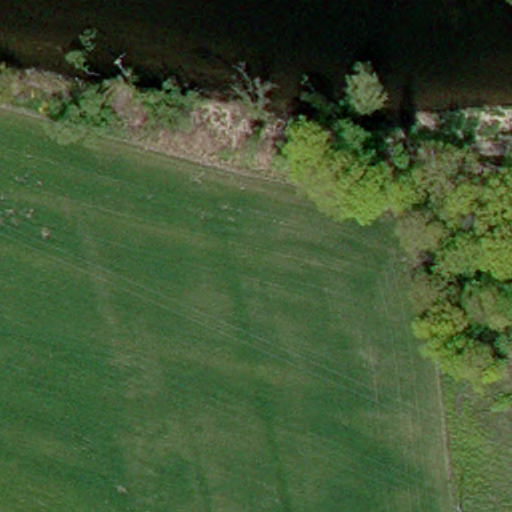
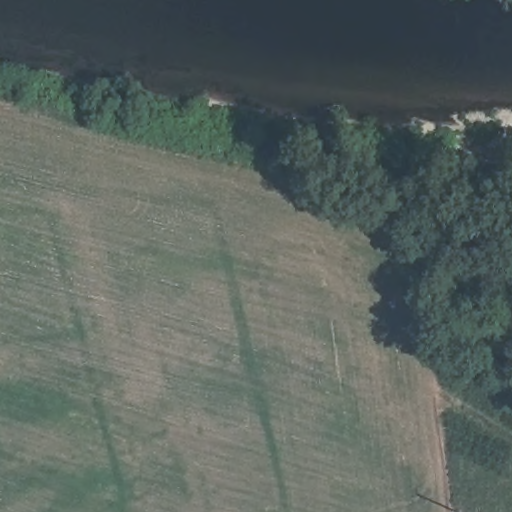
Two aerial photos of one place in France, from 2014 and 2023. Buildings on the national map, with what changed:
[]

